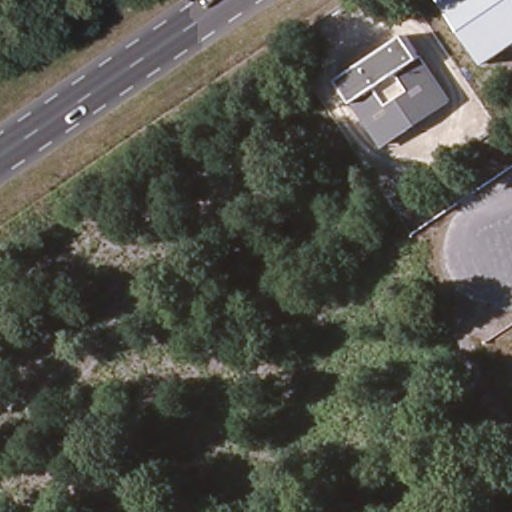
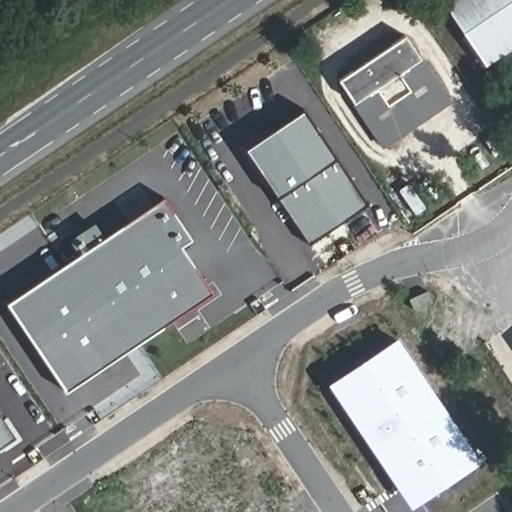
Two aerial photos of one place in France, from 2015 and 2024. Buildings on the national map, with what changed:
unchanged [(441,0),(503,0),(512,13),(512,45),(483,64),(441,0)]
unchanged [(512,13),(503,0),(512,0),(512,13)]
unchanged [(337,80),(405,35),(448,101),(381,146),(337,80)]
new [(306,107),(370,203),(311,242),(247,147),(306,107)]
new [(166,196),(194,237),(184,245),(215,291),(68,390),(10,302),(166,196)]
new [(432,302),(413,310),(409,299),(426,291),(432,302)]
new [(400,342),(480,462),(420,503),(339,382),(400,342)]
new [(14,436),(0,445),(0,415),(14,436)]

